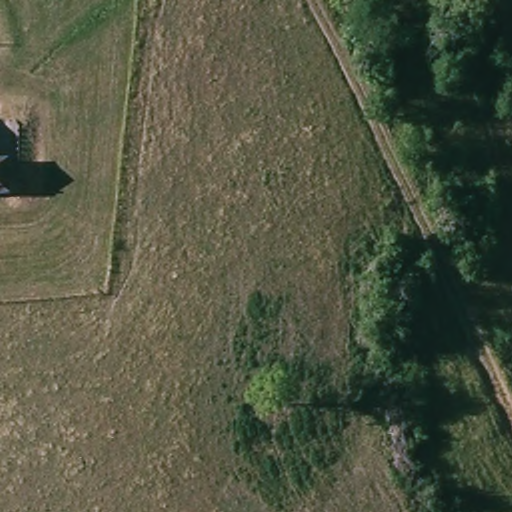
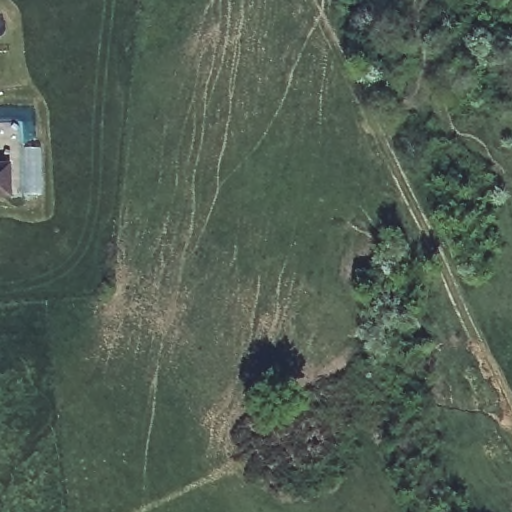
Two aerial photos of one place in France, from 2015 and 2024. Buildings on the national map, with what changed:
unchanged [(9,191),(0,192),(0,164),(8,163),(9,191)]

